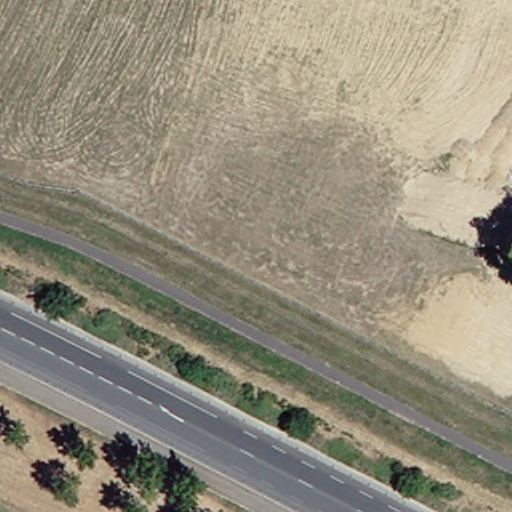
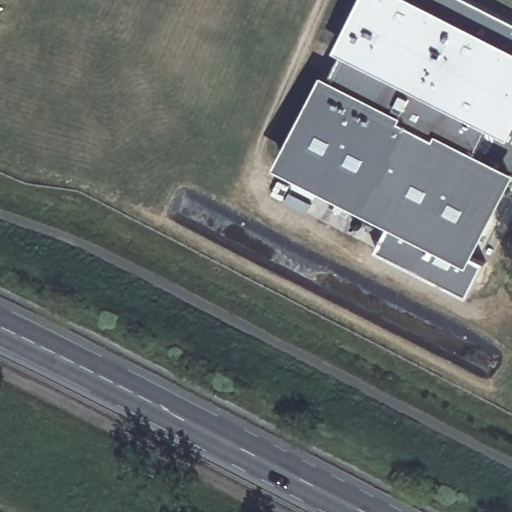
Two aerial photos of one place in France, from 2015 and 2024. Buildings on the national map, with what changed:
new [(360,0),(470,0),(512,21),(512,92),(493,130),(489,129),(477,153),(507,168),(465,251),(481,259),(463,295),(371,248),(385,220),(277,165),(360,0)]
demolished [(472,79),(490,47),(512,61),(512,102),(472,79)]
demolished [(467,146),(478,126),(511,145),(484,194),(493,199),(476,229),(467,224),(370,173),(404,112),(467,146)]

